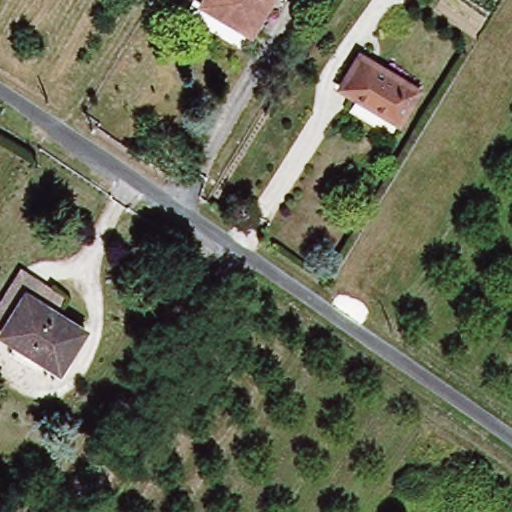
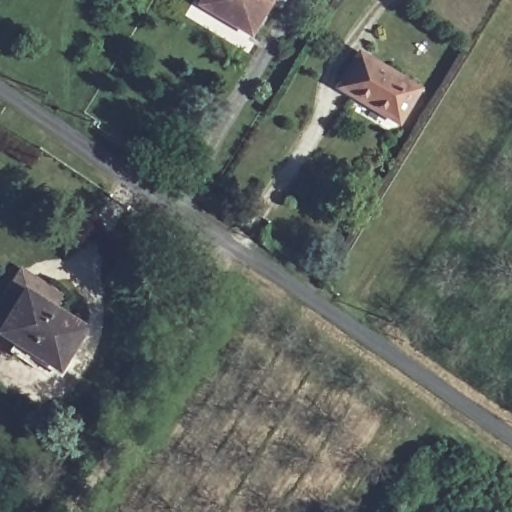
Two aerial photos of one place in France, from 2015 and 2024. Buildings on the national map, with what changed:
unchanged [(203,2),(205,0),(276,0),(254,35),(203,2)]
unchanged [(345,84),(364,54),(421,89),(402,119),(345,84)]
unchanged [(10,333),(0,327),(0,321),(29,276),(73,303),(65,316),(34,297),(10,333)]
unchanged [(94,334),(68,377),(7,338),(10,333),(34,297),(65,316),(94,334)]

